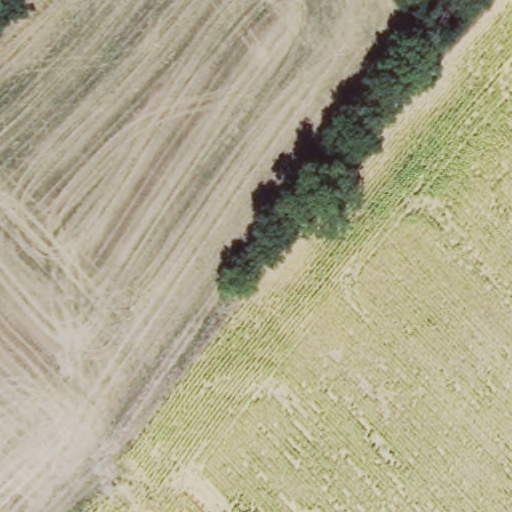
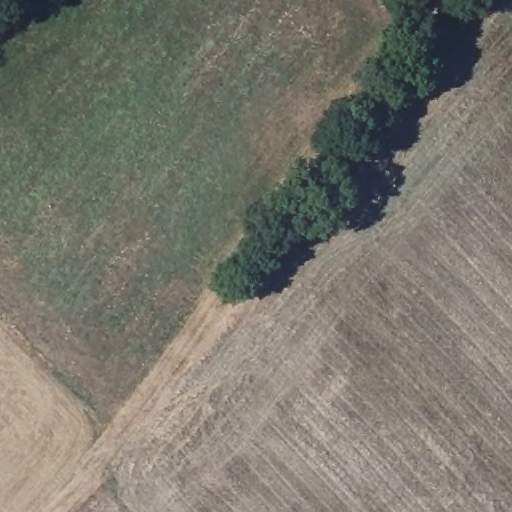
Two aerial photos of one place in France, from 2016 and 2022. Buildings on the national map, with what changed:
unchanged [(126,380),(133,372),(144,381),(130,395),(121,387),(126,380)]

